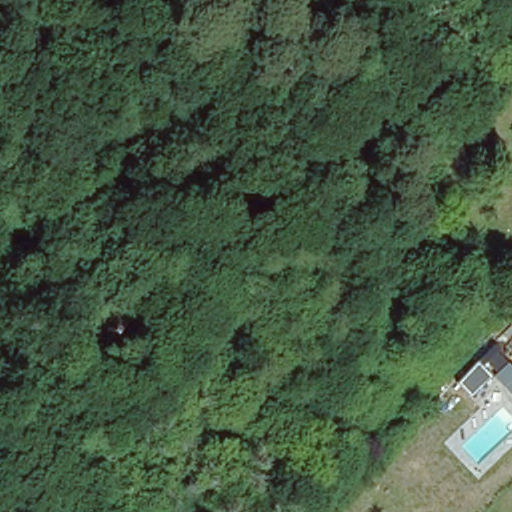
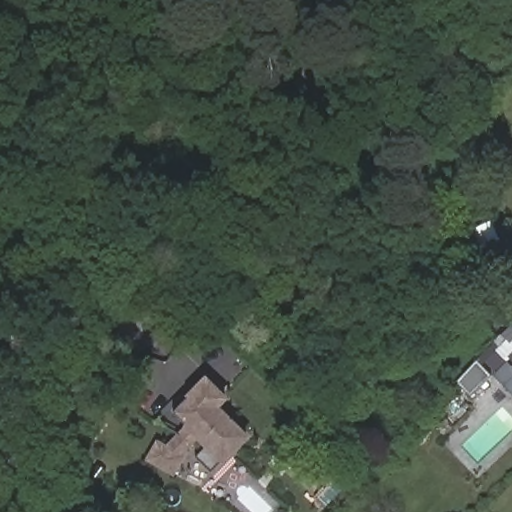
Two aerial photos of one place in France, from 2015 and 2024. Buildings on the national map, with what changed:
demolished [(478,292),(492,280),(507,297),(492,309),(478,292)]
new [(220,408),(252,437),(224,464),(197,441),(184,455),(187,457),(174,476),(145,460),(158,439),(166,445),(183,429),(182,428),(187,424),(177,413),(189,400),(187,397),(207,376),(229,400),(220,408)]

